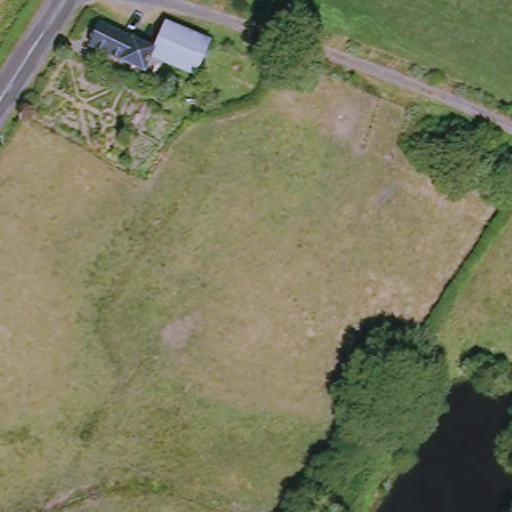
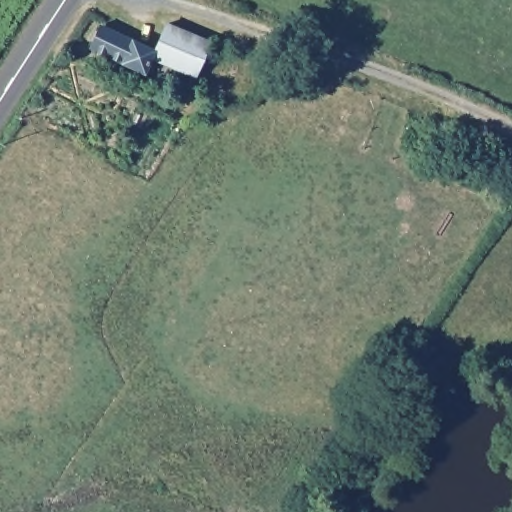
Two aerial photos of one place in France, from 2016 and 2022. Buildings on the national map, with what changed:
unchanged [(147,50),(158,23),(202,39),(189,74),(144,58),(147,50)]
unchanged [(138,69),(87,46),(96,24),(147,50),(144,58),(138,69)]

